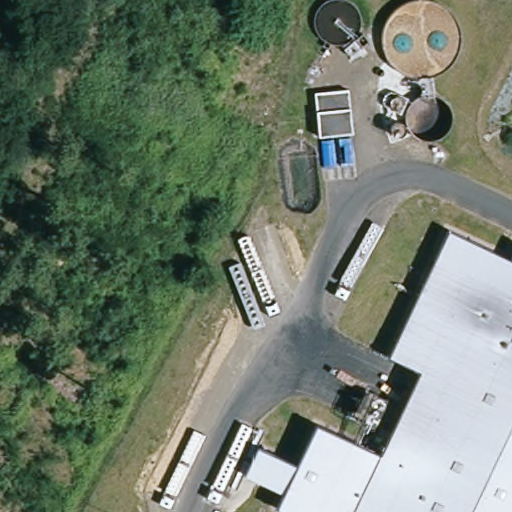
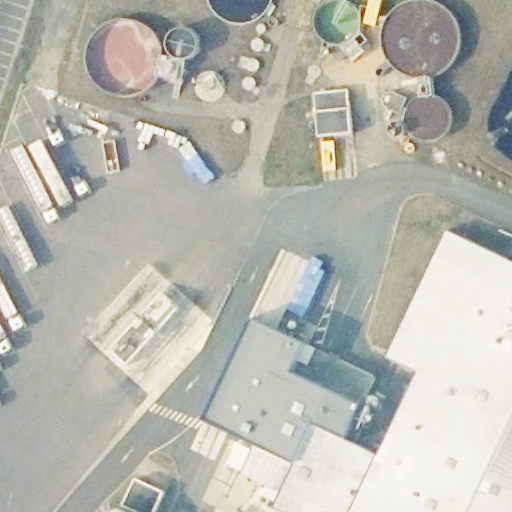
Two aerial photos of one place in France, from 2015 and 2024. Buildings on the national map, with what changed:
unchanged [(319,138),(315,92),(348,88),(351,134),(319,138)]
unchanged [(315,426),(378,455),(418,373),(388,358),(447,230),(512,261),(512,512),(283,512),(275,509),(283,493),(244,474),(256,448),(295,467),(315,426)]
new [(251,319),(305,345),(293,373),(361,406),(346,440),(315,426),(295,467),(256,448),(204,421),(251,319)]
new [(157,512),(136,512),(123,506),(136,478),(165,492),(157,512)]

